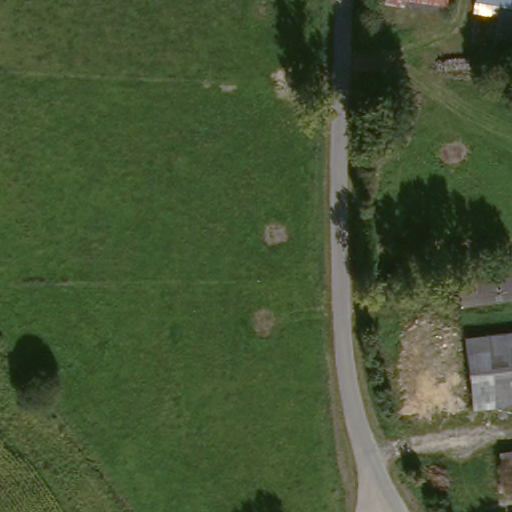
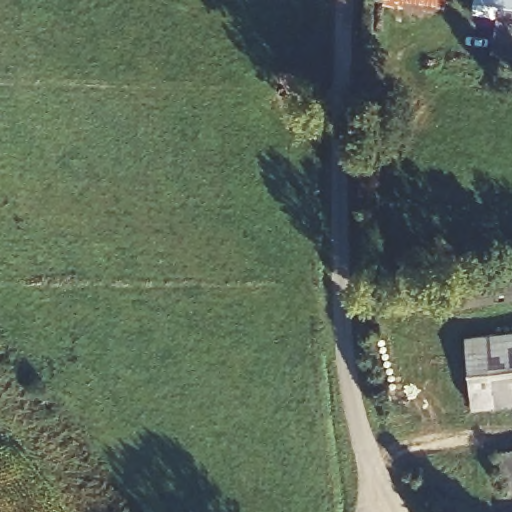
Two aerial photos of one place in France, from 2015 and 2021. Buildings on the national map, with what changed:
unchanged [(378,0),(441,0),(437,19),(430,17),(376,7),(378,0)]
unchanged [(496,19),(475,14),(477,0),(512,0),(512,57),(490,53),(496,19)]
unchanged [(512,305),(455,316),(450,280),(512,268),(512,305)]
unchanged [(512,409),(470,417),(460,350),(512,339),(512,409)]
unchanged [(512,493),(495,496),(489,460),(512,456),(512,493)]

